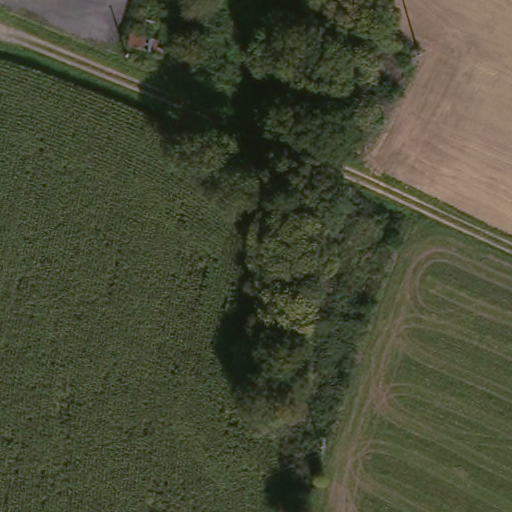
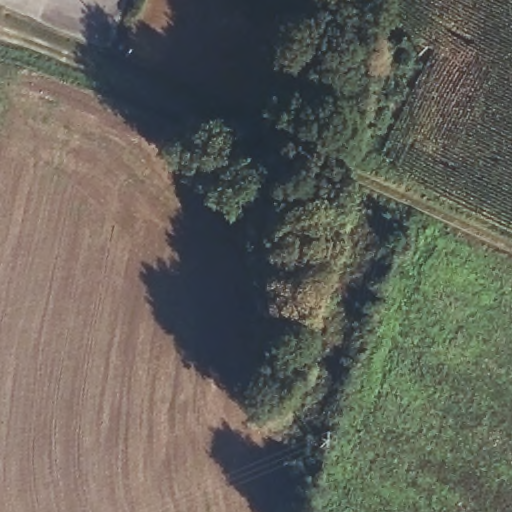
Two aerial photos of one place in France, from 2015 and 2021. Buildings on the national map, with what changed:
unchanged [(269,0),(302,14),(289,44),(254,29),(267,0),(269,0)]

